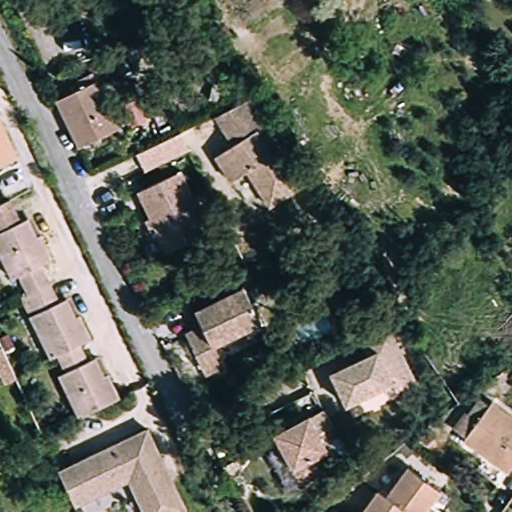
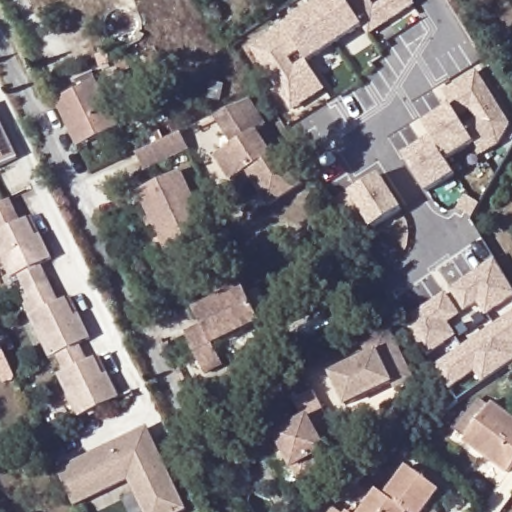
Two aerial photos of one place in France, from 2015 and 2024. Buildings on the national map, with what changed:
new [(363,27),(308,64),(326,90),(292,112),(250,48),(284,25),(322,0),(370,0),(375,7),(386,0),(412,0),(416,6),(369,36),(363,27)]
new [(432,137),(424,125),(452,106),(442,92),(477,71),(512,126),(500,146),(483,156),(475,143),(447,162),(457,175),(428,194),(403,156),(432,137)]
unchanged [(98,82),(121,129),(81,150),(58,101),(98,82)]
unchanged [(221,101),(209,98),(214,82),(225,84),(221,101)]
unchanged [(264,130),(255,137),(269,160),(279,154),(300,188),(267,209),(244,173),(230,181),(214,157),(228,148),(211,123),(249,105),(264,130)]
unchanged [(0,171),(0,129),(17,163),(0,171)]
unchanged [(143,151),(155,145),(164,164),(153,170),(142,175),(132,155),(143,151)]
unchanged [(210,229),(167,250),(137,190),(181,169),(210,229)]
new [(380,174),(403,209),(373,229),(350,194),(380,174)]
unchanged [(29,272),(23,274),(4,233),(36,217),(45,234),(49,232),(60,256),(50,261),(60,282),(38,292),(29,272)]
new [(477,304),(465,312),(450,290),(494,258),(512,288),(512,298),(486,316),(477,304)]
unchanged [(72,375),(76,372),(67,353),(63,355),(42,313),(47,310),(38,292),(60,282),(69,300),(77,296),(85,313),(88,312),(100,337),(90,342),(99,362),(107,358),(115,375),(119,373),(130,396),(91,415),(72,375)]
unchanged [(261,321),(211,346),(222,366),(204,374),(183,335),(203,325),(196,311),(243,288),(261,321)]
new [(460,315),(449,324),(457,336),(428,357),(403,322),(445,293),(460,315)]
new [(512,311),(512,363),(482,383),(475,372),(450,389),(434,366),(512,311)]
unchanged [(394,385),(389,375),(344,399),(328,369),(364,349),(356,333),(387,318),(409,360),(415,373),(394,385)]
unchanged [(4,384),(0,376),(0,346),(1,346),(16,379),(4,384)]
unchanged [(510,468),(466,435),(494,398),(512,411),(512,465),(510,468)]
unchanged [(343,439),(327,446),(331,454),(315,463),(321,475),(301,486),(276,439),(328,412),(343,439)]
unchanged [(187,510),(183,512),(144,512),(127,479),(74,503),(57,467),(148,426),(187,510)]
unchanged [(246,461),(247,470),(231,484),(224,471),(246,461)]
unchanged [(446,488),(429,512),(417,512),(413,509),(392,493),(413,464),(446,488)]
unchanged [(392,493),(413,509),(411,512),(365,512),(383,487),(392,493)]
unchanged [(352,512),(354,509),(357,512),(352,512)]

